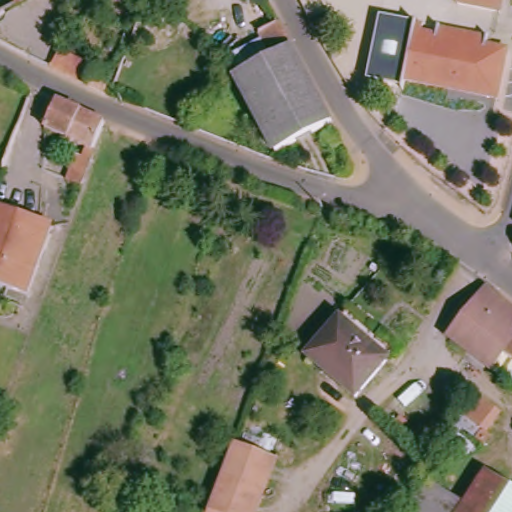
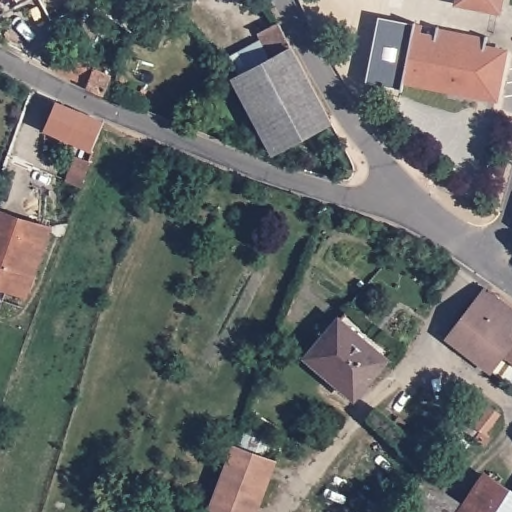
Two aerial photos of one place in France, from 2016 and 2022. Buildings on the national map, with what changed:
unchanged [(20,6),(17,0),(31,0),(20,6)]
unchanged [(502,12),(460,3),(460,0),(505,0),(502,12)]
unchanged [(497,99),(400,82),(400,87),(366,78),(379,15),(411,21),(422,24),(421,28),(435,31),(437,25),(486,36),(485,42),(507,47),(497,99)]
unchanged [(237,75),(245,69),(237,54),(264,41),(264,32),(282,22),(294,49),(334,127),(274,157),(237,75)]
unchanged [(60,54),(115,77),(109,96),(52,70),(60,54)]
unchanged [(105,120),(95,149),(97,150),(77,208),(64,203),(82,156),(86,157),(89,149),(49,128),(60,101),(105,120)]
unchanged [(0,288),(0,208),(13,213),(56,229),(32,299),(0,288)]
unchanged [(454,339),(487,287),(512,303),(512,343),(508,350),(497,368),(454,339)]
unchanged [(357,398),(309,359),(340,321),(389,360),(357,398)]
unchanged [(512,343),(512,352),(508,350),(512,343)]
unchanged [(479,397),(504,415),(487,435),(483,434),(477,441),(457,425),(479,397)]
unchanged [(258,512),(223,512),(212,509),(237,442),(279,456),(258,512)]
unchanged [(489,473),(512,488),(512,512),(463,512),(467,507),(489,473)]
unchanged [(463,512),(405,512),(426,480),(467,507),(463,512)]
unchanged [(223,512),(211,512),(212,509),(223,512)]

